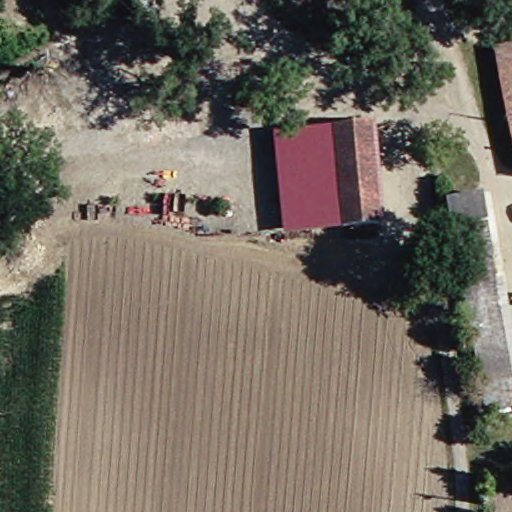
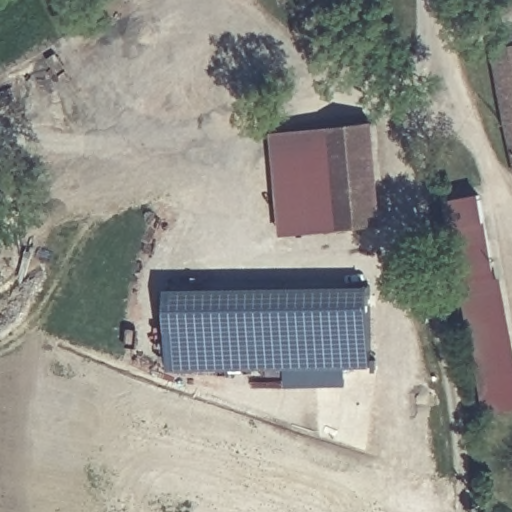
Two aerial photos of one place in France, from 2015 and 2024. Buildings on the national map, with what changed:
unchanged [(498,54),(512,50),(512,110),(498,54)]
unchanged [(327,228),(319,131),(375,120),(382,224),(327,228)]
new [(327,228),(283,233),(273,132),(319,131),(327,228)]
unchanged [(502,413),(498,401),(487,403),(456,248),(451,194),(488,192),(495,261),(512,342),(512,410),(502,413)]
new [(346,387),(285,388),(285,368),(170,369),(169,289),(371,288),(368,319),(371,319),(372,367),(346,367),(346,387)]

